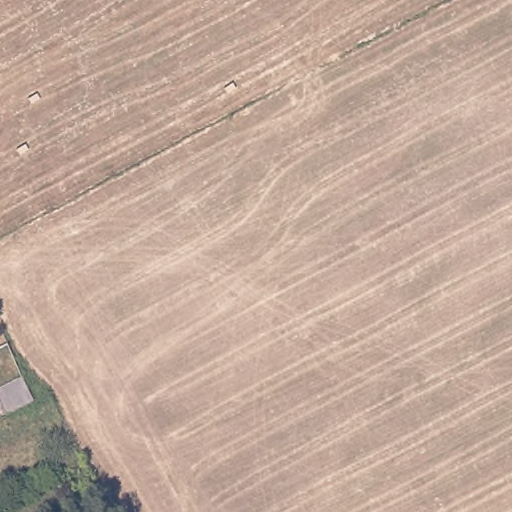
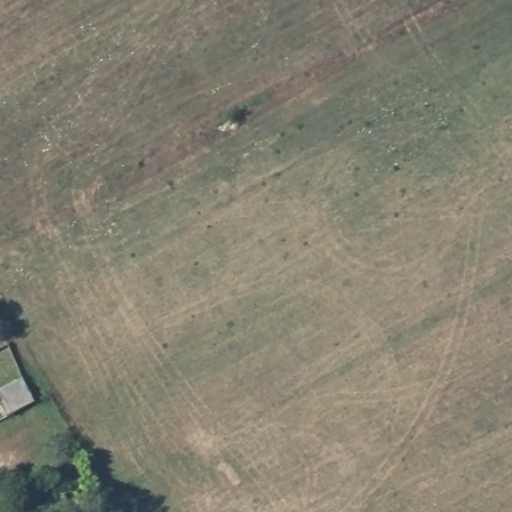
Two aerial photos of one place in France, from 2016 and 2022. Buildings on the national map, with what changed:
unchanged [(23,377),(35,403),(8,416),(0,401),(0,389),(23,377)]

